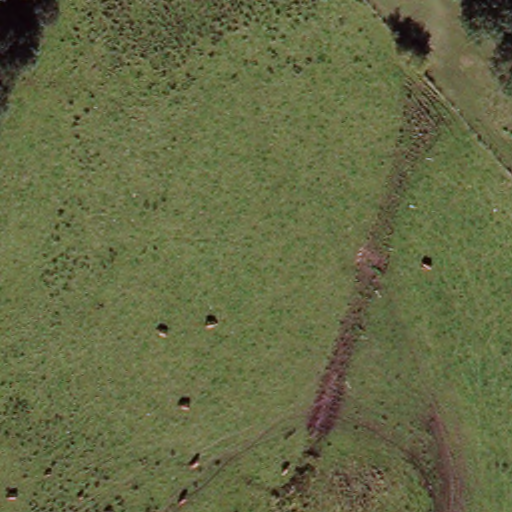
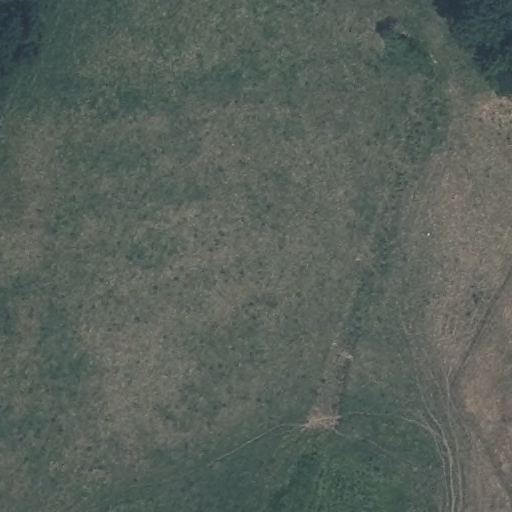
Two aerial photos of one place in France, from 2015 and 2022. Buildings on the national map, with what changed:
[]

